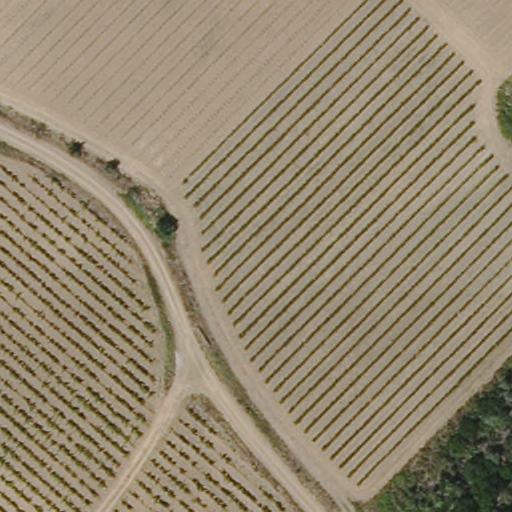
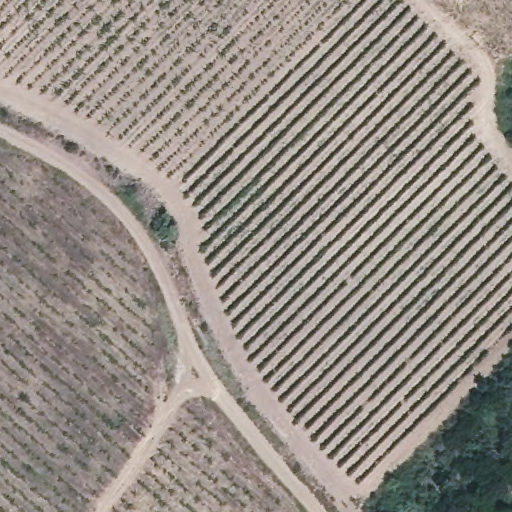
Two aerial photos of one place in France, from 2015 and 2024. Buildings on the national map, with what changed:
[]

